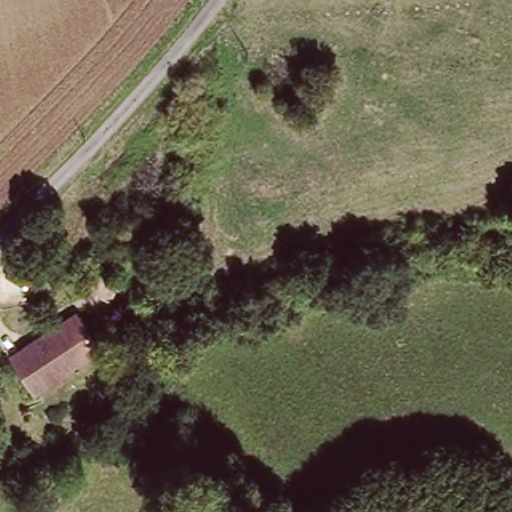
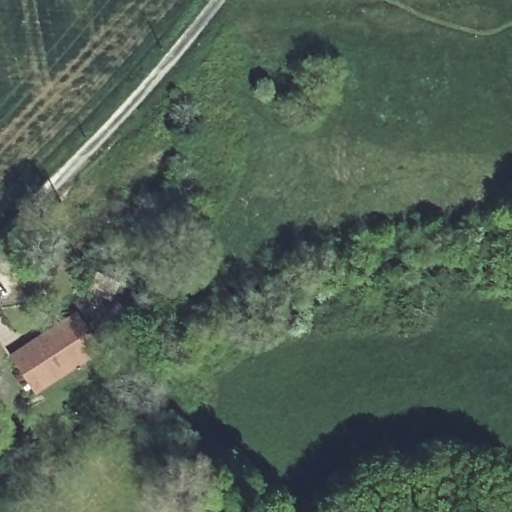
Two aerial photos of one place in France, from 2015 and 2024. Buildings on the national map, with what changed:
unchanged [(82,366),(45,390),(37,395),(15,356),(26,348),(82,315),(101,346),(105,352),(82,366)]

